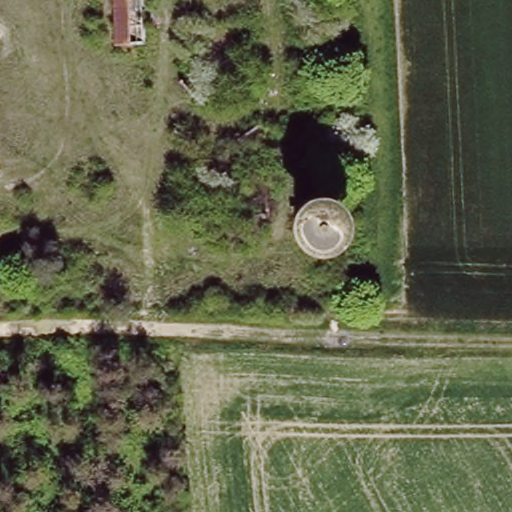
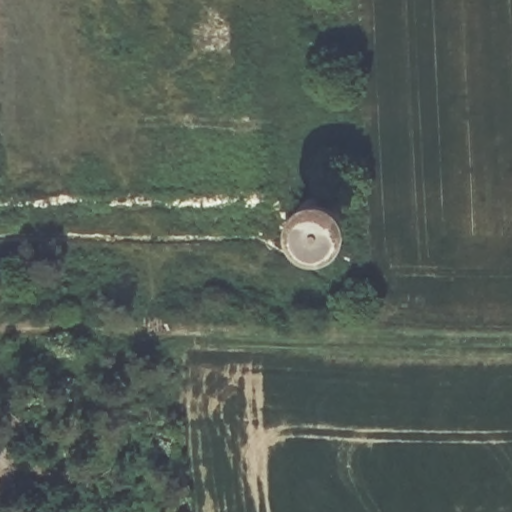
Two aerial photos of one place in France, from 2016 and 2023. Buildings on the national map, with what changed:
demolished [(148,44),(115,45),(113,0),(146,0),(148,44)]

